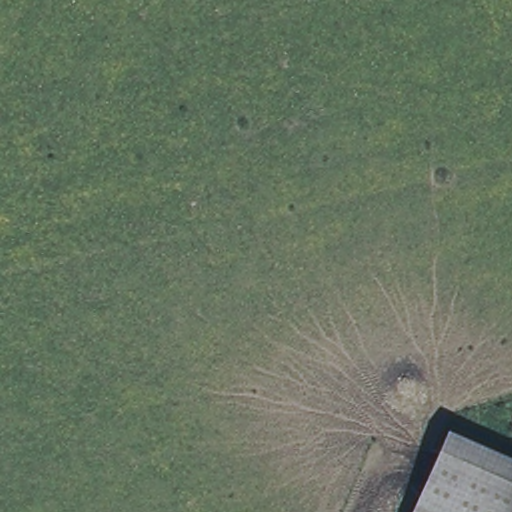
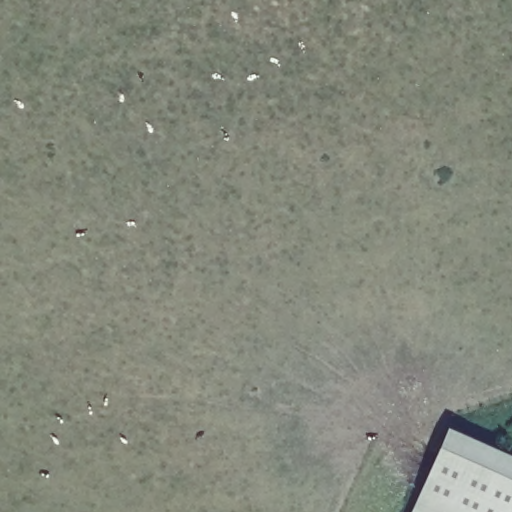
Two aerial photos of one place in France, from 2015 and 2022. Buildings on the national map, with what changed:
unchanged [(512,451),(512,505),(509,512),(409,512),(449,424),(512,451)]
unchanged [(509,512),(512,505),(512,512),(509,512)]

